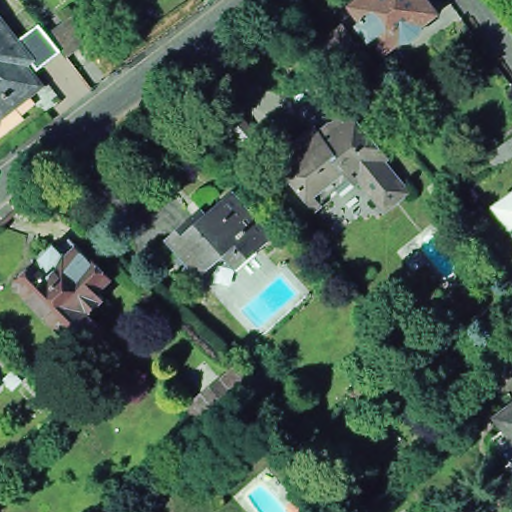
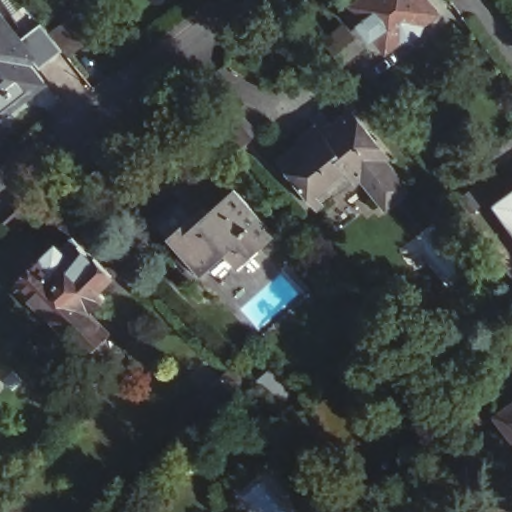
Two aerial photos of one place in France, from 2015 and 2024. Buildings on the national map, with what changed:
unchanged [(429,18),(425,27),(417,34),(407,34),(392,45),(381,30),(377,33),(367,19),(370,16),(359,0),(438,0),(443,7),(429,18)]
unchanged [(42,23),(50,34),(76,13),(94,38),(69,57),(63,50),(40,69),(32,59),(25,65),(22,61),(15,66),(34,91),(0,118),(0,15),(20,40),(42,23)]
unchanged [(347,69),(329,46),(325,40),(345,23),(351,29),(347,33),(365,54),(347,69)]
unchanged [(337,58),(345,69),(330,79),(322,69),(337,58)]
unchanged [(381,141),(375,145),(407,184),(387,199),(367,175),(360,180),(358,177),(355,174),(340,185),(337,182),(315,199),(299,179),(302,177),(290,160),(307,146),(305,143),(323,129),(329,135),(357,111),(381,141)]
unchanged [(489,155),(512,139),(512,158),(498,169),(489,155)]
unchanged [(276,235),(238,269),(225,254),(209,270),(190,249),(184,255),(182,253),(169,238),(195,214),(204,206),(209,212),(235,189),(276,235)]
unchanged [(512,196),(512,208),(507,200),(512,196)]
unchanged [(42,255),(57,242),(67,252),(81,266),(95,253),(112,272),(99,284),(106,292),(90,308),(109,327),(89,346),(64,320),(62,322),(20,277),(42,255)]
unchanged [(188,406),(204,394),(222,378),(237,365),(251,379),(252,378),(254,376),(259,382),(270,373),(287,396),(295,406),(285,416),(277,406),(276,405),(262,417),(244,394),(258,383),(237,398),(239,399),(220,414),(205,427),(188,406)]
unchanged [(502,412),(512,404),(512,452),(497,433),(511,423),(502,412)]

